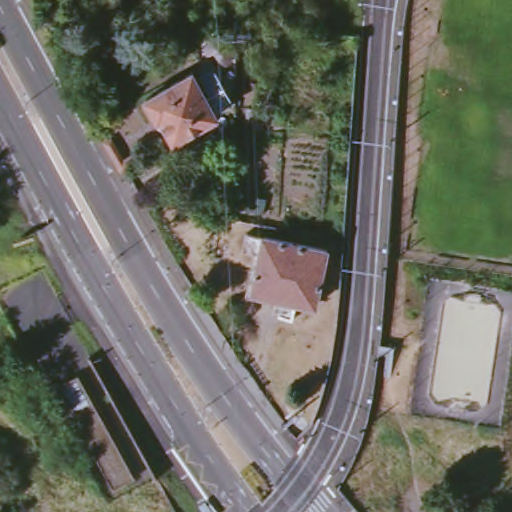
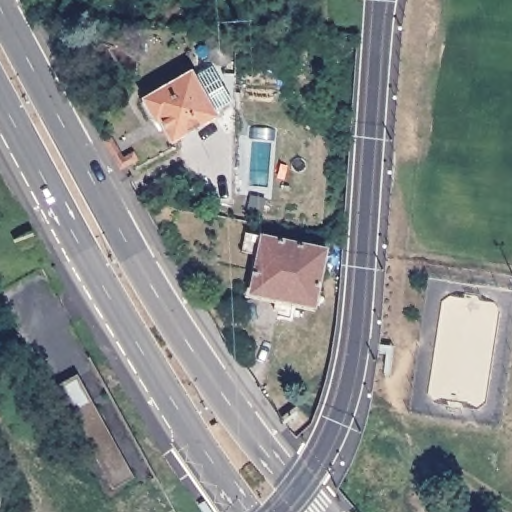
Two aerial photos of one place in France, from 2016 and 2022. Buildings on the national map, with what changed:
unchanged [(161,120),(153,124),(141,104),(148,100),(146,97),(196,70),(222,115),(173,143),(161,120)]
unchanged [(265,237),(326,251),(314,307),(253,294),(265,237)]
unchanged [(115,486),(61,387),(78,378),(132,477),(115,486)]

